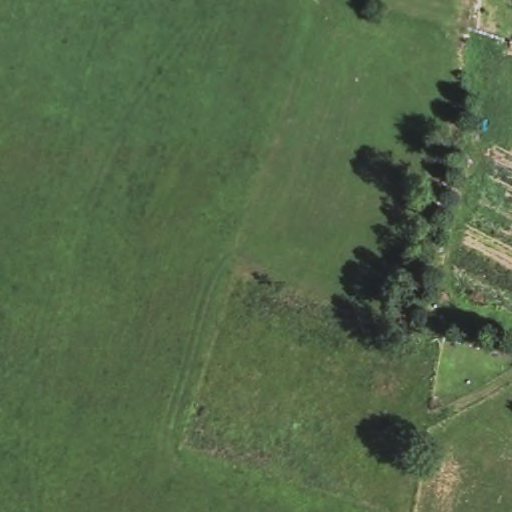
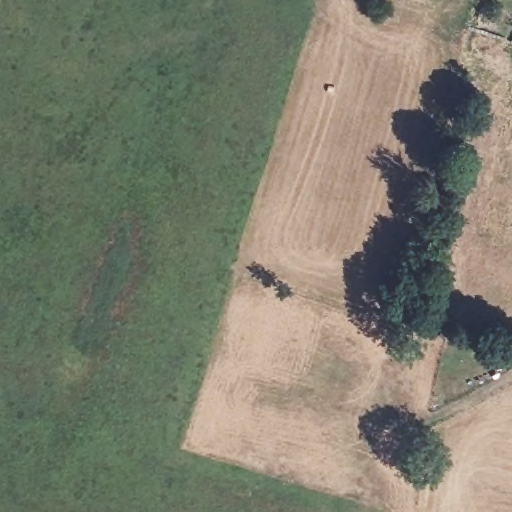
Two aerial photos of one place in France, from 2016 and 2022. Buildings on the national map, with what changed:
[]

